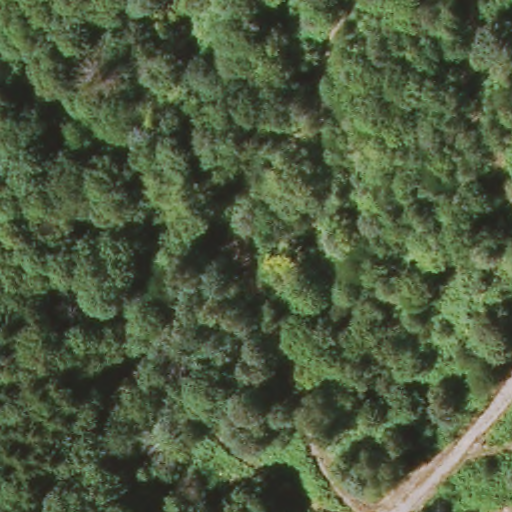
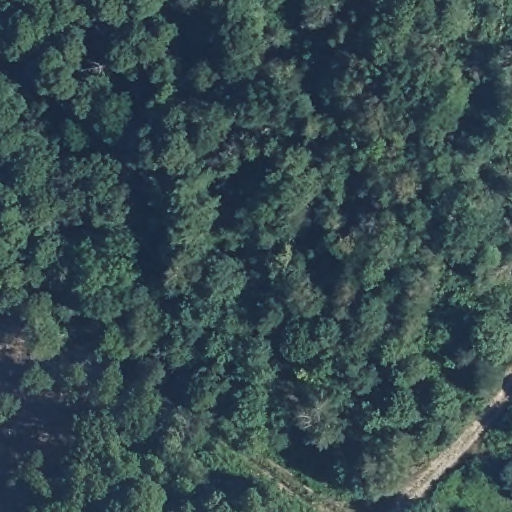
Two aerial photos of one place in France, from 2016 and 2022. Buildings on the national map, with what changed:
[]

